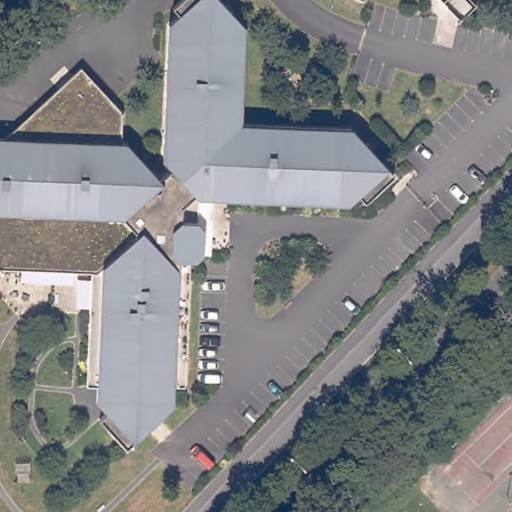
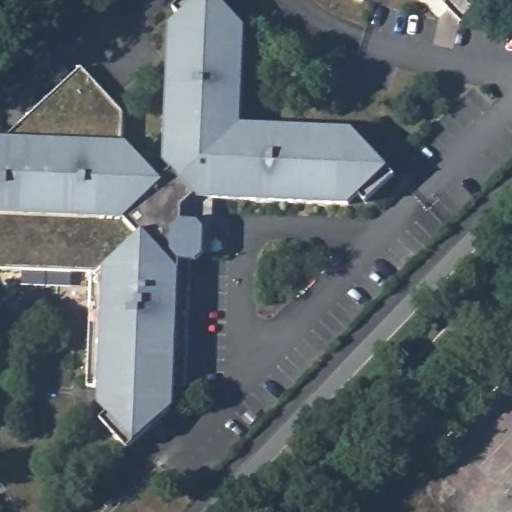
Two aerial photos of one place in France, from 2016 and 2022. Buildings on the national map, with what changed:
unchanged [(106,417),(97,407),(97,392),(86,392),(91,278),(0,274),(0,142),(32,144),(33,116),(80,72),(122,117),(121,147),(126,147),(159,185),(171,174),(163,166),(168,30),(178,21),(172,13),(186,0),(214,0),(244,32),(240,129),(350,134),(393,180),(364,207),(357,200),(347,210),(198,204),(197,227),(204,234),(203,259),(195,266),(190,266),(185,392),(174,392),(173,410),(126,453),(99,424),(106,417)]

